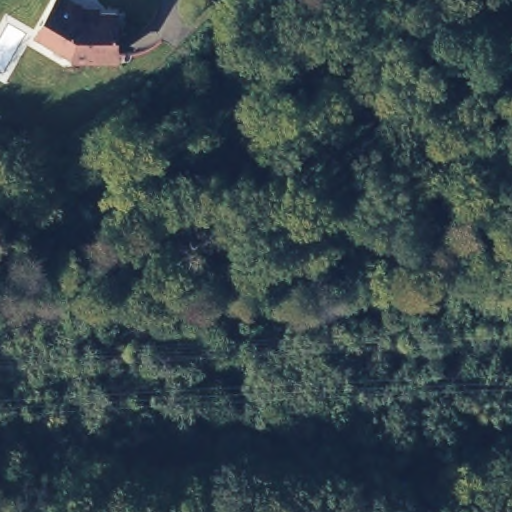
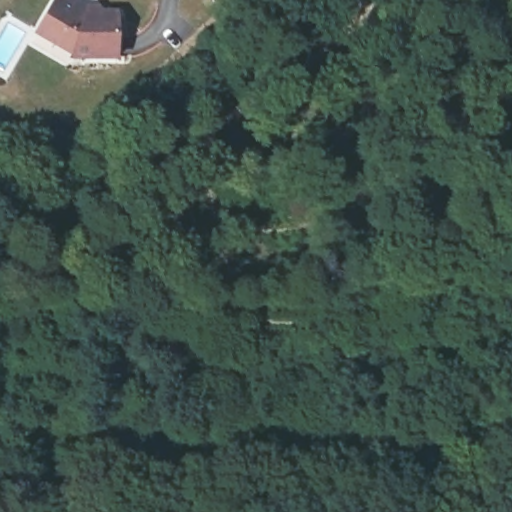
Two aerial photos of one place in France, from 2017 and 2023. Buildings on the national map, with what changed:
unchanged [(83,8),(83,12),(98,13),(118,13),(117,57),(73,57),(72,53),(42,35),(38,32),(50,9),(56,0),(71,0),(83,8)]

